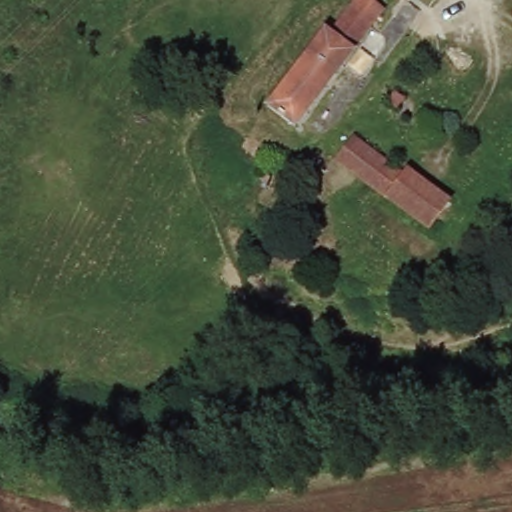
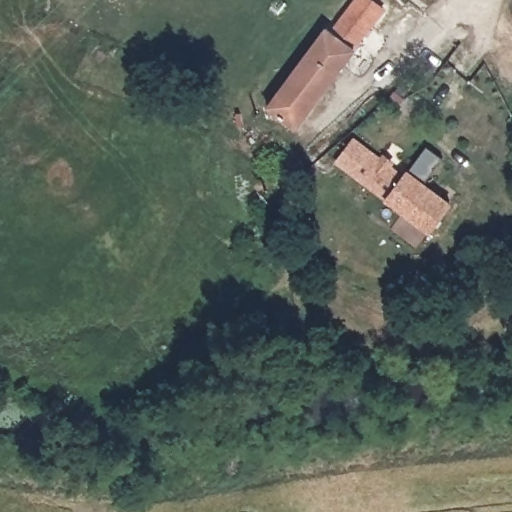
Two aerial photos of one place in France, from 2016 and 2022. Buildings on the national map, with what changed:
unchanged [(260,111),(262,108),(264,105),(269,104),(330,20),(334,23),(351,0),(387,0),(292,134),(276,123),(273,121),(269,123),(263,122),(260,120),(260,115),(260,111)]
unchanged [(395,1),(394,0),(396,0),(395,1)]
unchanged [(352,141),(404,175),(407,170),(449,198),(429,228),(383,197),(336,165),(352,141)]

